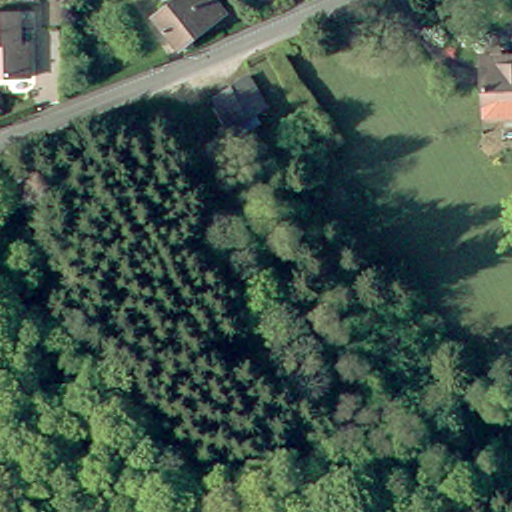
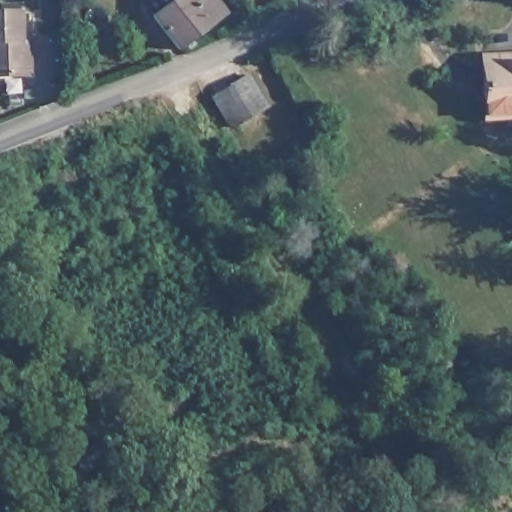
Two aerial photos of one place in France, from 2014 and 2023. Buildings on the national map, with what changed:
unchanged [(170,0),(210,0),(202,6),(212,21),(181,45),(155,12),(170,0)]
unchanged [(30,46),(37,46),(37,78),(0,79),(0,17),(30,17),(30,46)]
unchanged [(512,64),(512,122),(492,122),(488,64),(512,64)]
unchanged [(212,94),(244,78),(269,109),(238,131),(212,94)]

